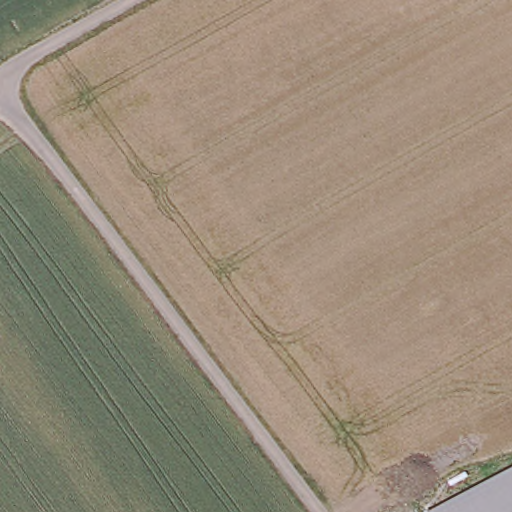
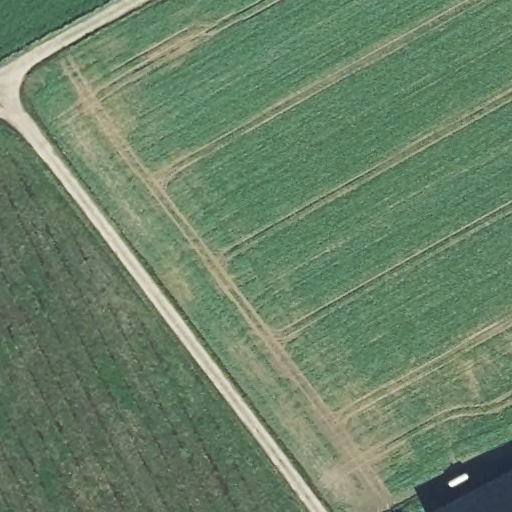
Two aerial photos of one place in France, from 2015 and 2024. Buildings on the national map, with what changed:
unchanged [(512,469),(512,512),(432,512),(464,495),(512,469)]

